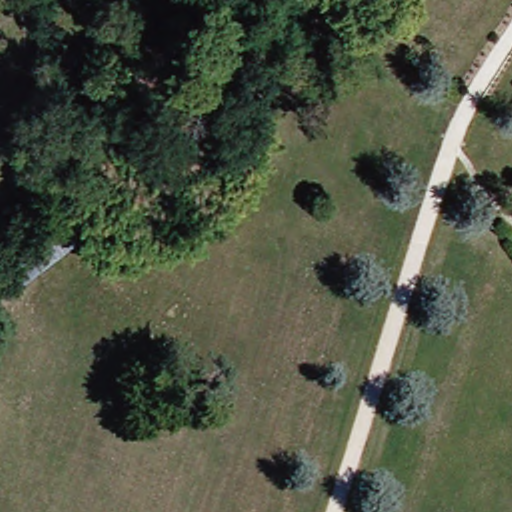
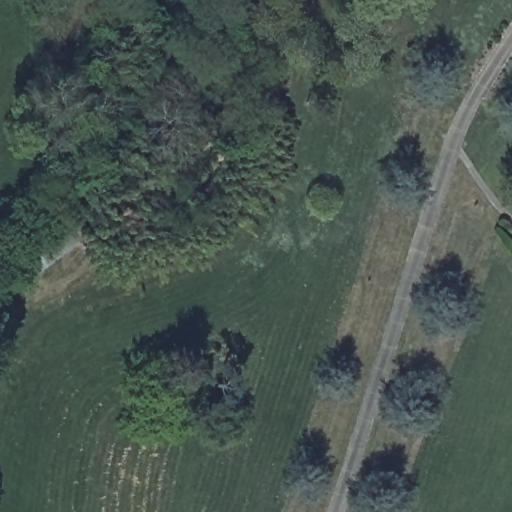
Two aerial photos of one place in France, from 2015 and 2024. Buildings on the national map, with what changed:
unchanged [(12,252),(51,223),(71,250),(31,278),(12,252)]

